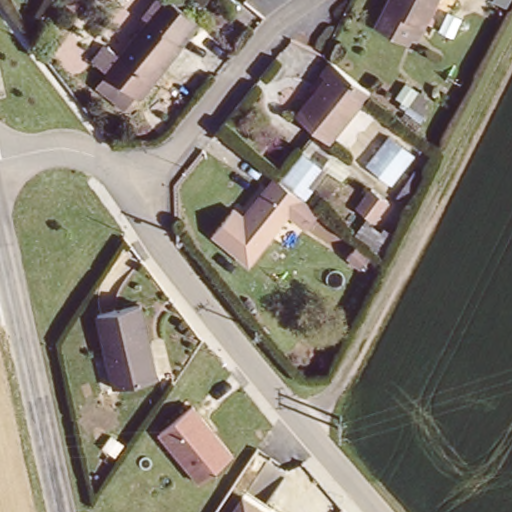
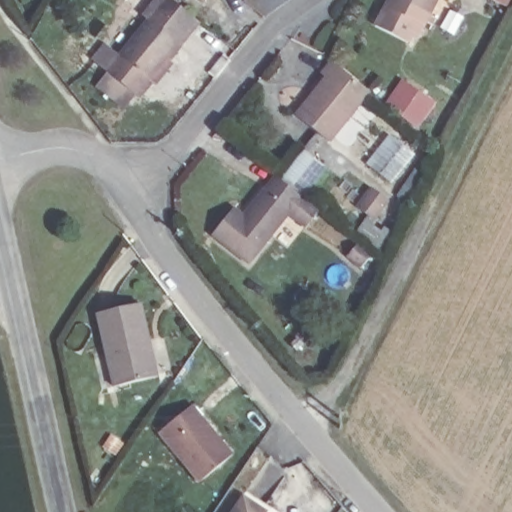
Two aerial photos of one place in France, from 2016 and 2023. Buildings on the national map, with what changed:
unchanged [(92,76),(104,61),(112,67),(144,28),(138,23),(157,0),(191,28),(173,51),(177,54),(162,71),(159,69),(142,90),(146,93),(134,109),(125,102),(116,114),(95,97),(104,85),(92,76)]
unchanged [(214,5),(208,0),(218,0),(214,5)]
unchanged [(425,26),(420,23),(410,44),(375,26),(389,0),(438,0),(425,26)]
unchanged [(326,75),(335,65),(372,96),(333,144),(300,116),(331,79),(326,75)]
unchanged [(366,166),(388,137),(415,156),(392,186),(366,166)]
unchanged [(300,153),(324,172),(307,193),(285,175),(300,153)]
unchanged [(326,211),(305,230),(287,219),(252,266),(209,232),(232,203),(248,208),(275,167),(326,211)]
unchanged [(389,205),(370,227),(355,216),(375,192),(389,205)]
unchanged [(356,252),(370,263),(362,273),(347,262),(356,252)]
unchanged [(147,303),(167,378),(121,391),(100,315),(147,303)]
unchanged [(192,413),(232,458),(200,487),(160,441),(192,413)]
unchanged [(269,512),(232,512),(243,496),(269,512)]

